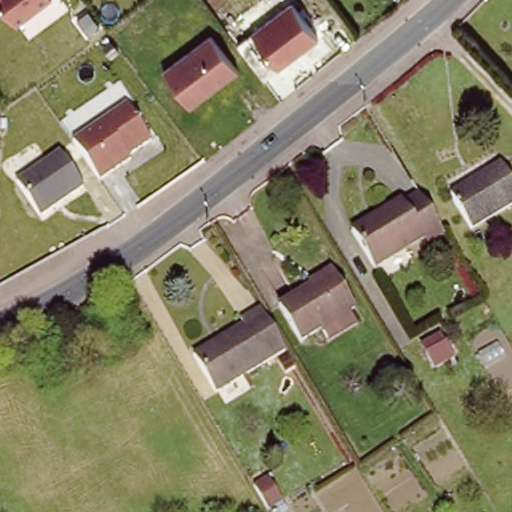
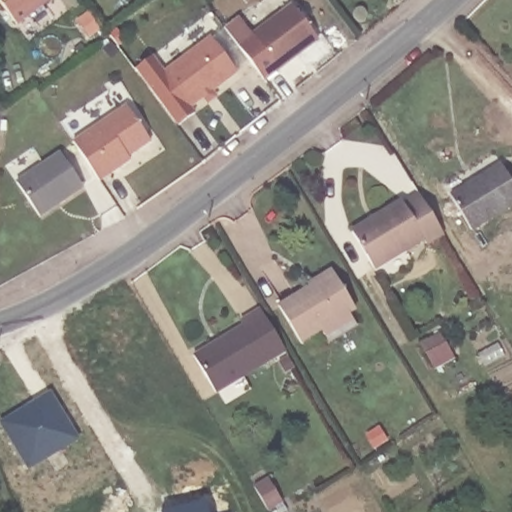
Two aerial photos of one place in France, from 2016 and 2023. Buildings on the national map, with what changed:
unchanged [(0,4),(0,0),(51,0),(17,26),(0,4)]
unchanged [(290,3),(318,40),(278,70),(250,34),(290,3)]
unchanged [(238,72),(190,109),(161,72),(210,35),(238,72)]
unchanged [(151,142),(128,157),(130,161),(100,181),(71,140),(125,104),(151,142)]
unchanged [(2,129),(0,128),(0,113),(2,114),(2,129)]
unchanged [(84,187),(40,217),(15,181),(59,151),(84,187)]
unchanged [(502,160),(512,177),(512,200),(472,225),(452,191),(502,160)]
unchanged [(432,244),(428,239),(378,267),(357,232),(407,202),(404,198),(421,188),(448,234),(432,244)]
unchanged [(330,337),(322,325),(301,337),(280,302),(312,282),(310,278),(332,265),(335,271),(355,304),(349,307),(357,321),(330,337)]
unchanged [(285,346),(216,388),(193,351),(244,320),(242,317),(260,305),(285,346)]
unchanged [(440,365),(432,351),(428,343),(442,335),(446,343),(455,357),(440,365)]
new [(27,408),(32,406),(30,402),(44,392),(73,437),(25,469),(0,430),(0,421),(22,407),(27,408)]
unchanged [(253,487),(268,478),(282,502),(268,511),(253,487)]
new [(203,497),(207,512),(159,512),(158,510),(203,497)]

